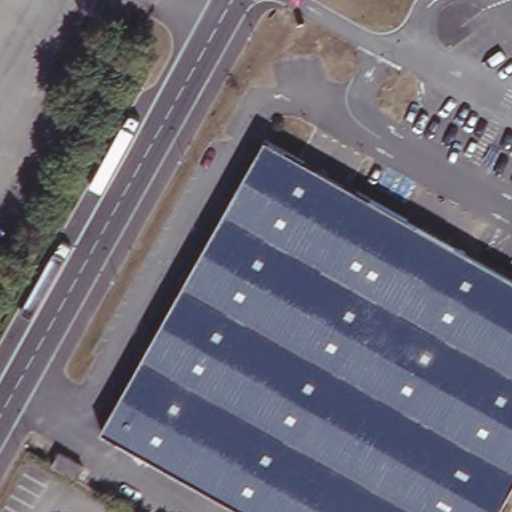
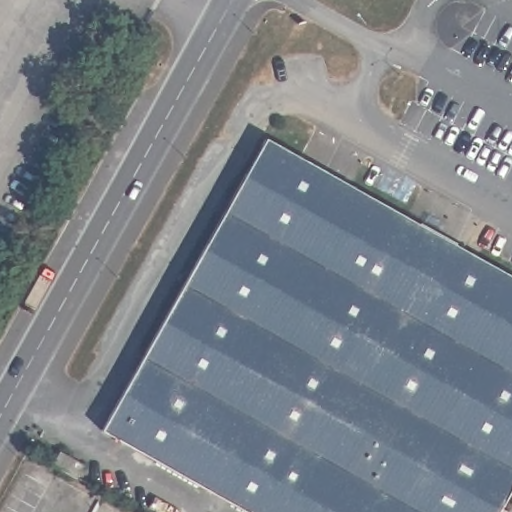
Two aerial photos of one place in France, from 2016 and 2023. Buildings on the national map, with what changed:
unchanged [(512,273),(512,496),(503,512),(240,512),(101,438),(265,139),(512,273)]
unchanged [(46,456),(53,444),(79,459),(72,470),(46,456)]

